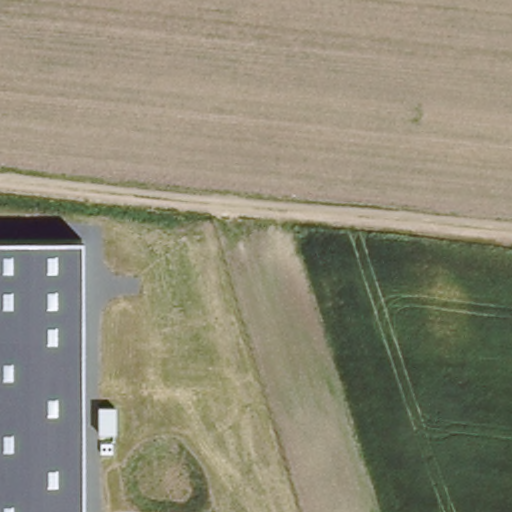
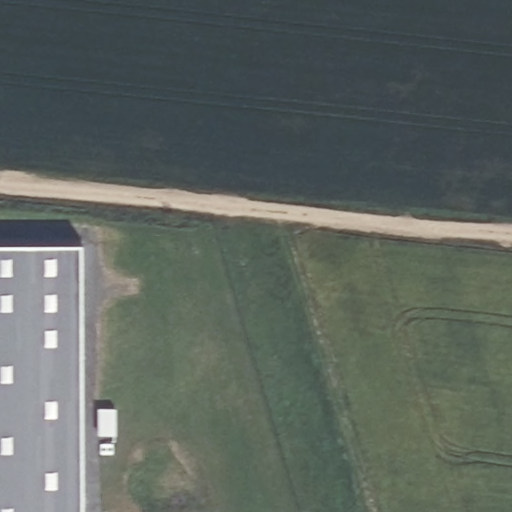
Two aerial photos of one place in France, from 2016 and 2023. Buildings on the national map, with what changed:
unchanged [(82,238),(82,512),(0,512),(0,239),(82,238)]

